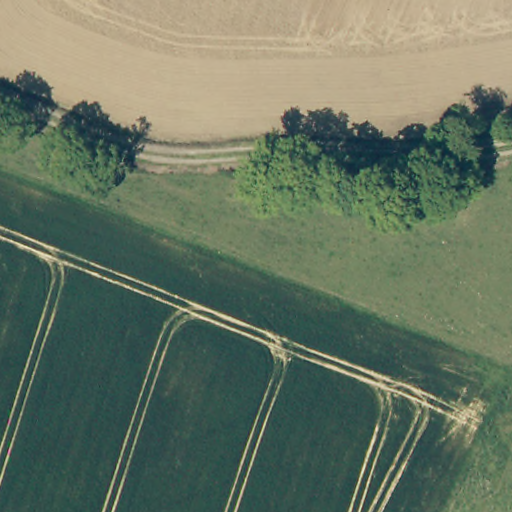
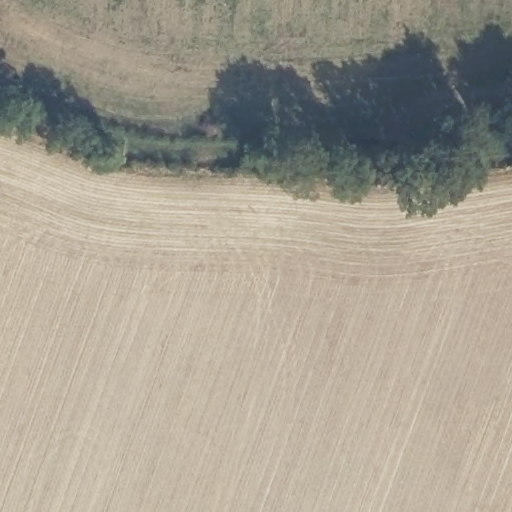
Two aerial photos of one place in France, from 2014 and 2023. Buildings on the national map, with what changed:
[]

